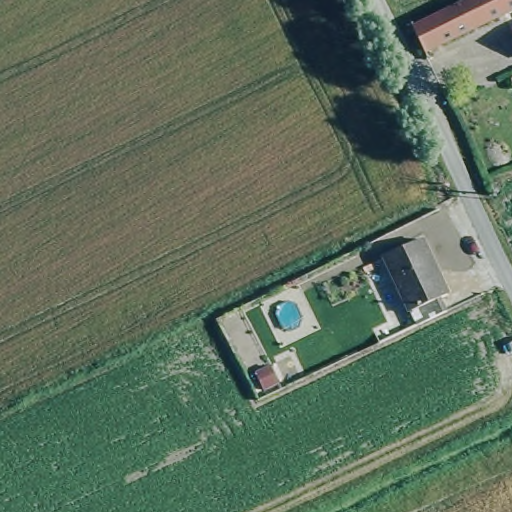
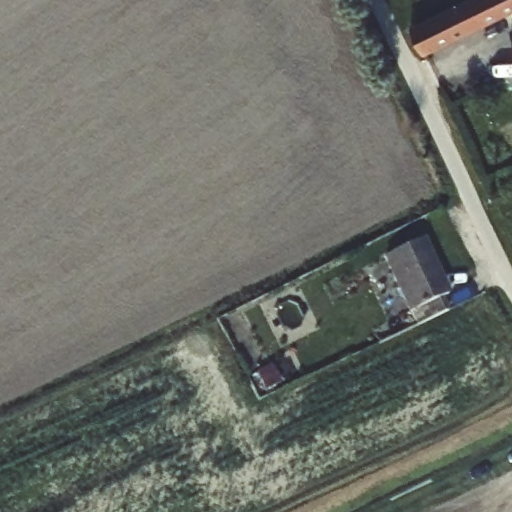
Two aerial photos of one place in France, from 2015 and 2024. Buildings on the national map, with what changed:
unchanged [(408,28),(466,0),(512,0),(512,6),(418,50),(408,28)]
unchanged [(413,323),(385,253),(422,237),(445,293),(436,299),(441,311),(413,323)]

